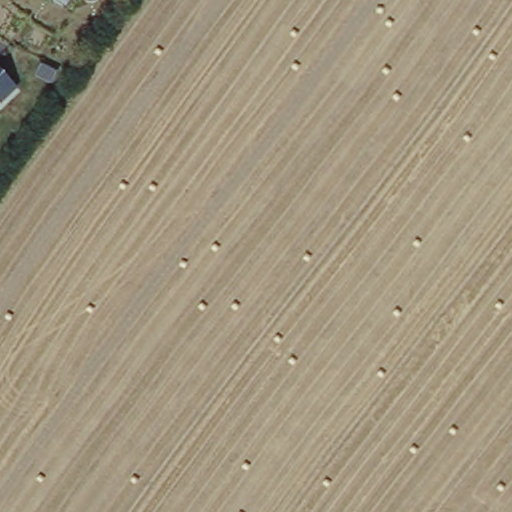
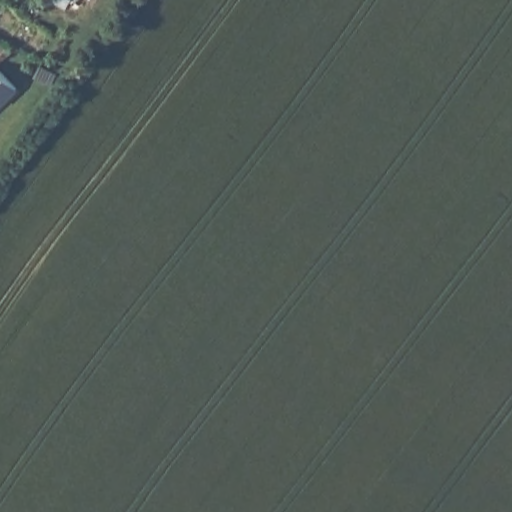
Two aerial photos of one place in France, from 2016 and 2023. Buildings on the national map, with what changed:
unchanged [(14,86),(0,100),(0,71),(14,86)]

